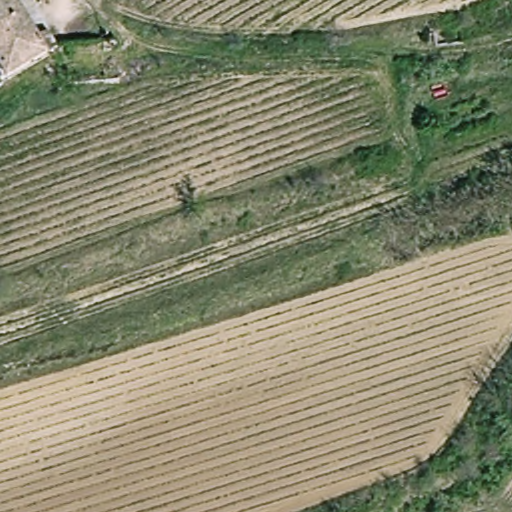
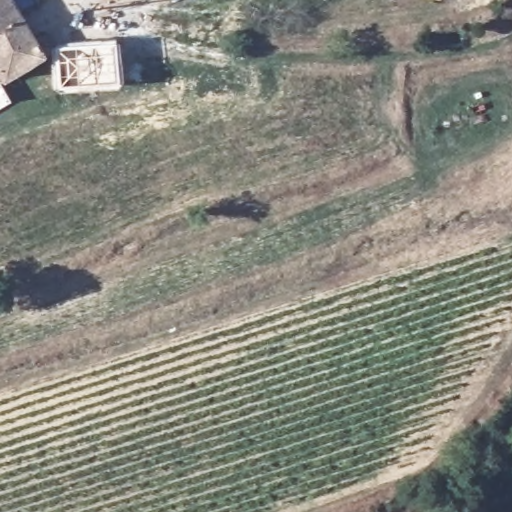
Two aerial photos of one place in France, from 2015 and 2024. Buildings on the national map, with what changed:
unchanged [(22,0),(30,13),(41,34),(54,28),(61,44),(34,60),(6,78),(2,71),(0,68),(0,0),(22,0)]
new [(55,47),(61,44),(117,41),(121,83),(59,88),(55,47)]

